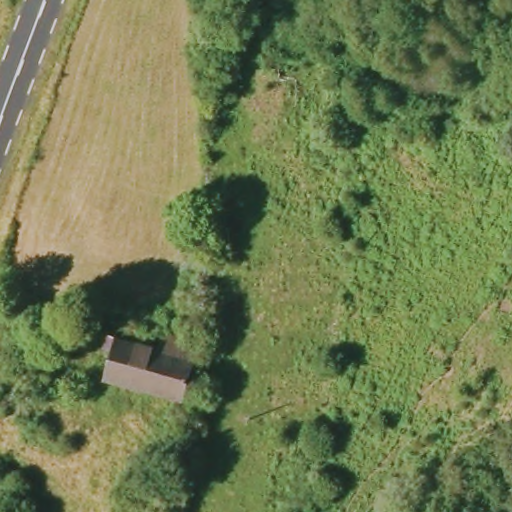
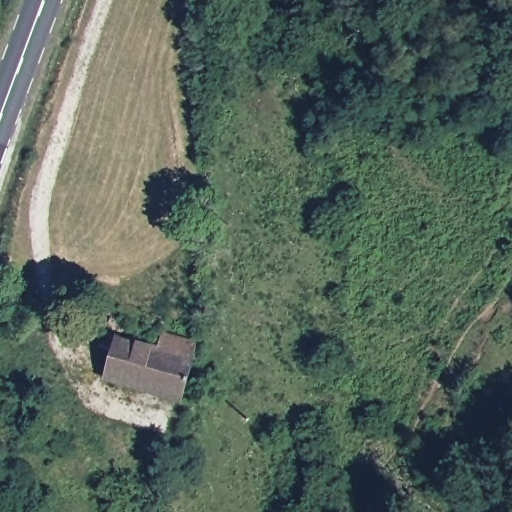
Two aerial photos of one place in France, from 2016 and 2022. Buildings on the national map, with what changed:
unchanged [(192,343),(177,401),(102,378),(110,352),(97,348),(102,333),(155,349),(160,335),(192,343)]

